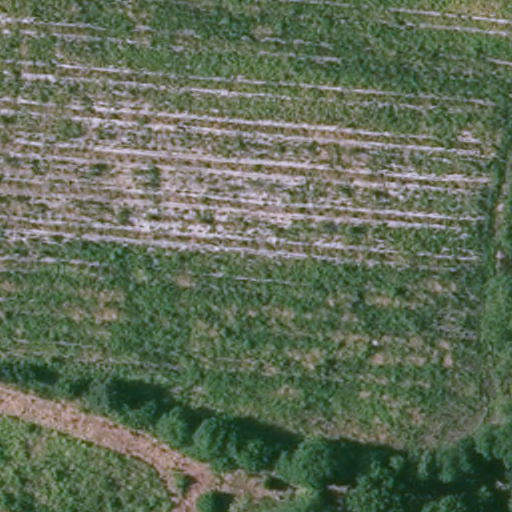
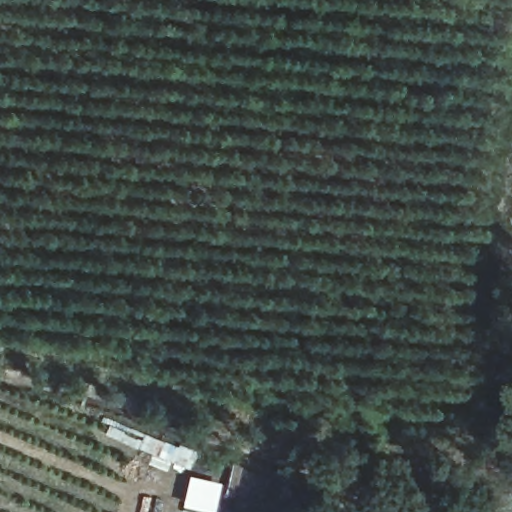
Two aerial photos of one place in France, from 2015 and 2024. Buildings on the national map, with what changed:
new [(180,505),(187,475),(220,483),(213,512),(209,512),(180,505)]

